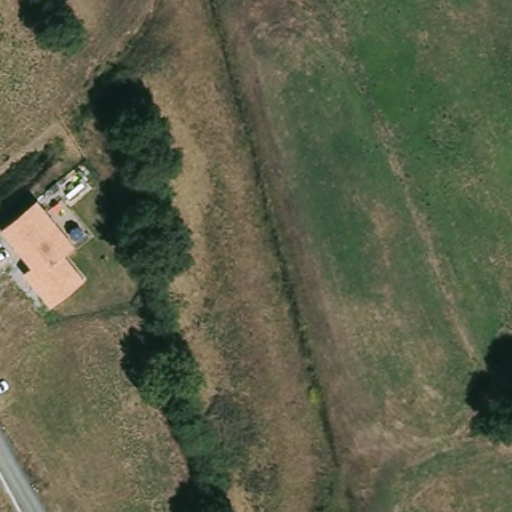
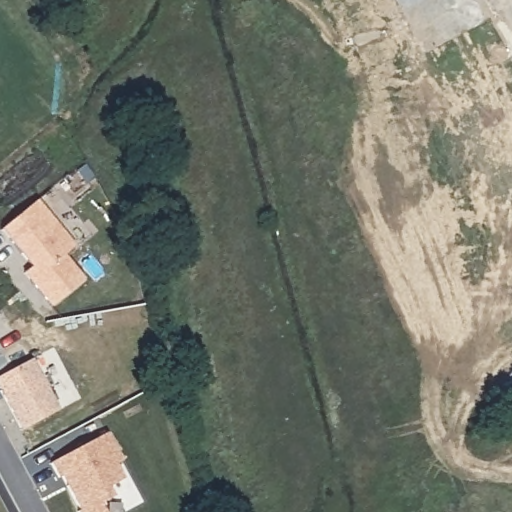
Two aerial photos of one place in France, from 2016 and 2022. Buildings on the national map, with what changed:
unchanged [(35,199),(72,245),(63,253),(82,278),(50,306),(22,271),(29,266),(1,229),(35,199)]
new [(22,429),(0,388),(0,375),(32,358),(58,410),(22,429)]
new [(123,460),(116,463),(123,477),(109,484),(114,494),(99,502),(104,512),(79,512),(52,462),(106,431),(123,460)]

